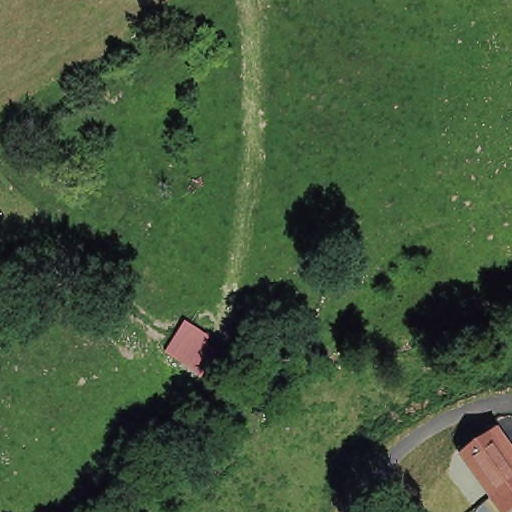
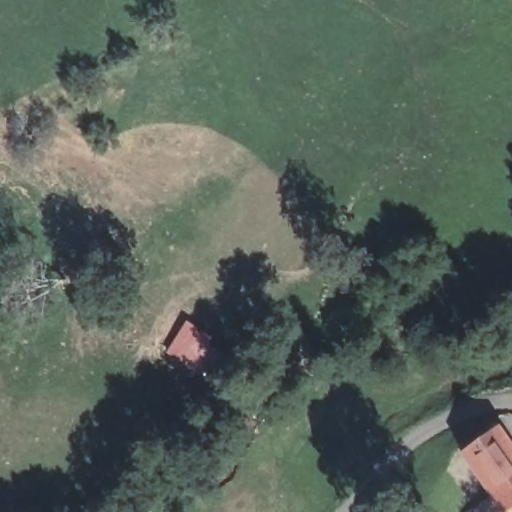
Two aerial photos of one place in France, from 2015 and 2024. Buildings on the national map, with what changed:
unchanged [(163,358),(184,324),(222,350),(198,381),(163,358)]
unchanged [(499,506),(471,466),(504,443),(512,455),(512,497),(499,506)]

